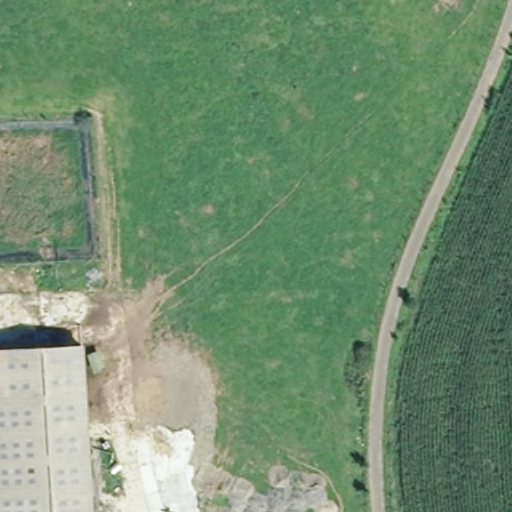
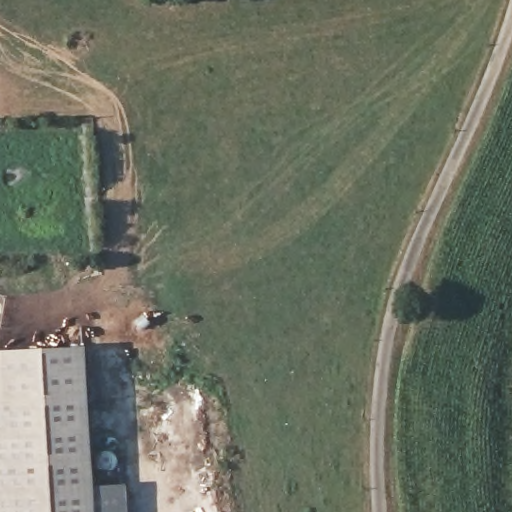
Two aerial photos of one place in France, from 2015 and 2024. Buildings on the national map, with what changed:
unchanged [(84,345),(95,512),(0,512),(0,401),(7,401),(3,350),(84,345)]
new [(3,350),(7,401),(0,401),(0,351),(3,350)]
new [(95,512),(93,485),(126,483),(127,512),(95,512)]

